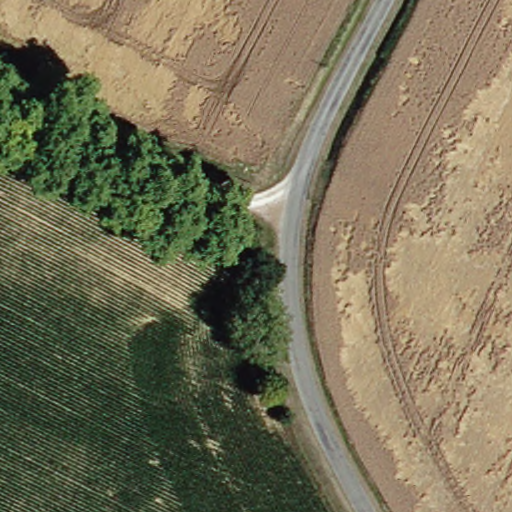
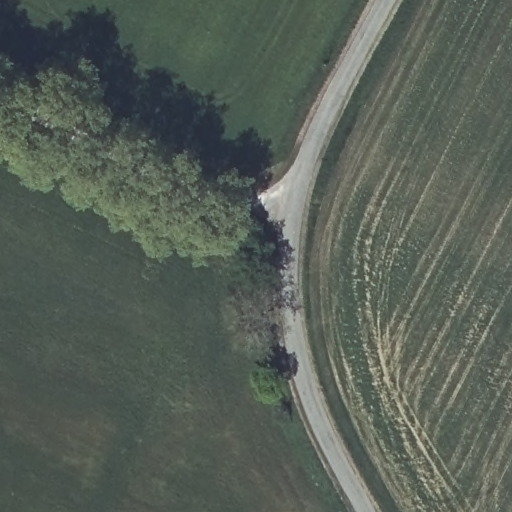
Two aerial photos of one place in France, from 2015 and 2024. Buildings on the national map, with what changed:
[]

